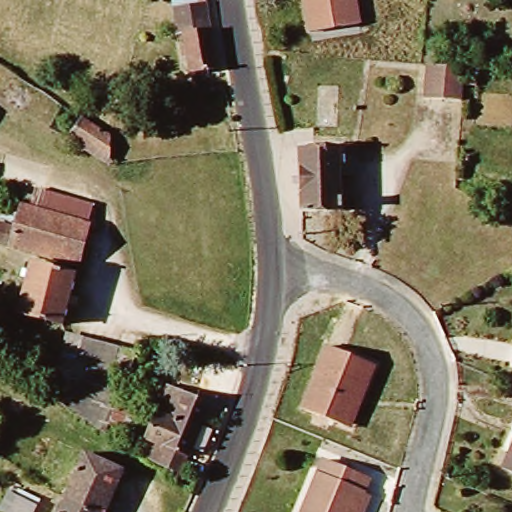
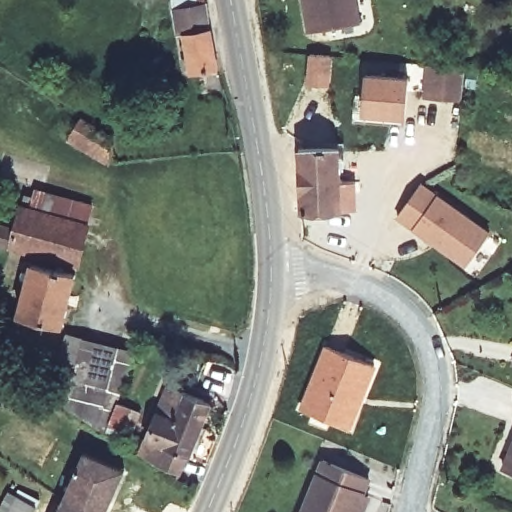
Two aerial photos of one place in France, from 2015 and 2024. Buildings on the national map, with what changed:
unchanged [(208,24),(216,66),(186,71),(179,29),(171,30),(170,5),(169,0),(205,0),(208,24)]
unchanged [(356,26),(305,34),(300,0),(352,0),(356,26)]
new [(314,52),(334,54),(330,83),(310,80),(314,52)]
unchanged [(480,71),(479,88),(463,87),(462,100),(422,97),(426,65),(465,70),(480,71)]
new [(367,71),(410,76),(407,114),(364,109),(367,71)]
unchanged [(115,137),(102,157),(69,139),(81,118),(115,137)]
unchanged [(343,189),(344,209),(294,212),(290,149),(329,147),(330,190),(343,189)]
unchanged [(375,159),(374,165),(364,162),(367,155),(375,159)]
new [(424,183),(492,233),(467,265),(400,215),(424,183)]
unchanged [(33,184),(94,202),(75,264),(15,246),(20,229),(17,226),(25,190),(32,192),(33,184)]
unchanged [(32,264),(74,274),(61,323),(20,313),(32,264)]
unchanged [(102,430),(75,411),(47,392),(67,333),(130,355),(114,397),(137,406),(129,427),(106,418),(102,430)]
unchanged [(345,423),(304,408),(327,345),(375,363),(362,395),(351,426),(345,423)]
unchanged [(207,402),(199,424),(214,430),(201,459),(185,453),(175,474),(140,451),(167,386),(207,402)]
unchanged [(512,448),(512,471),(504,467),(512,448)]
unchanged [(83,452),(119,467),(99,512),(96,512),(63,497),(83,452)]
unchanged [(361,475),(357,487),(365,490),(358,512),(297,512),(317,458),(361,475)]
unchanged [(5,488),(35,500),(30,512),(6,512),(0,510),(0,501),(5,488)]
unchanged [(96,512),(57,512),(63,497),(96,512)]

